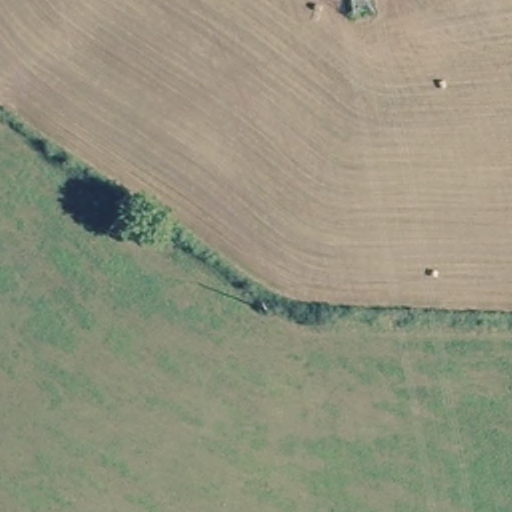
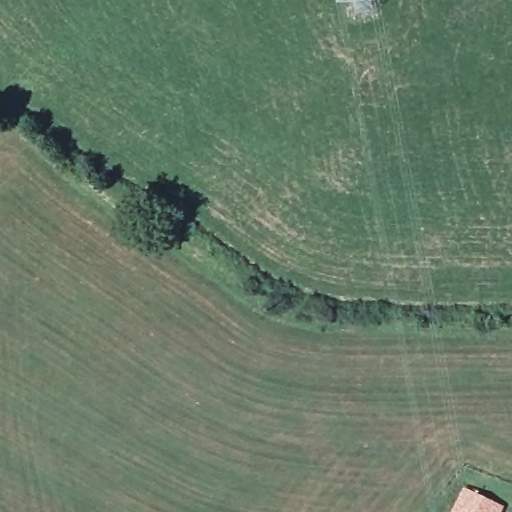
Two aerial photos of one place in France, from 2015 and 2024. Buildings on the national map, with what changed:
new [(503,506),(501,512),(452,512),(464,487),(503,506)]

